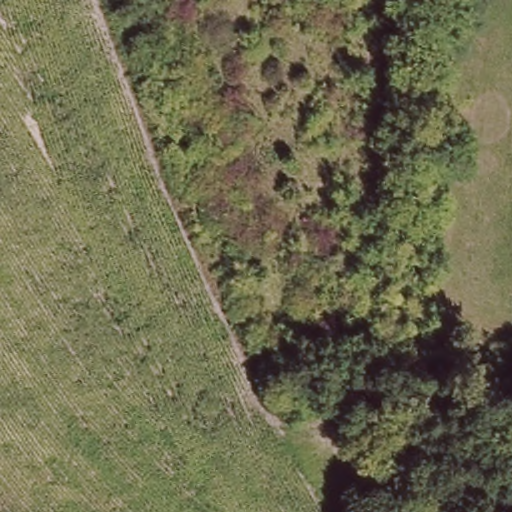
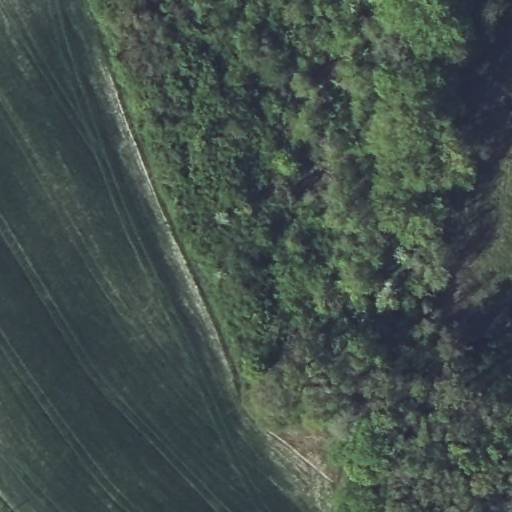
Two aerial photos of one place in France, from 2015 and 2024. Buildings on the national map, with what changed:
[]

